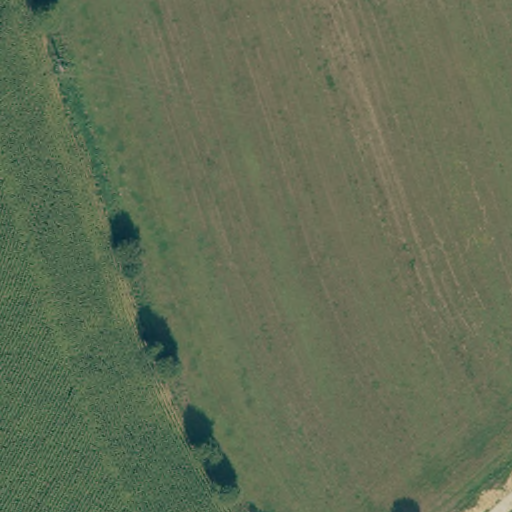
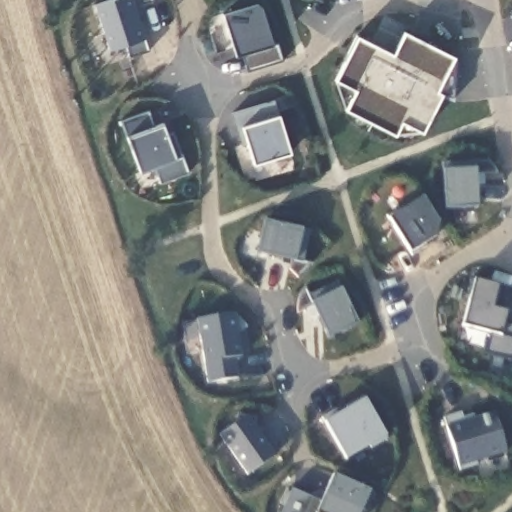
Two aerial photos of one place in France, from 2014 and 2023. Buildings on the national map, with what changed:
new [(135,7),(150,50),(130,55),(127,44),(110,49),(95,4),(112,0),(153,0),(153,1),(135,7)]
new [(440,92),(420,130),(401,121),(395,133),(346,109),(355,88),(337,79),(358,36),(394,52),(405,33),(456,58),(454,100),(440,92)]
new [(252,163),(240,127),(234,113),(276,100),(279,116),(290,151),(252,163)]
new [(149,111),(154,127),(162,124),(169,141),(175,138),(189,172),(160,183),(154,166),(140,171),(121,120),(149,111)]
new [(476,173),(477,206),(445,208),(442,170),(440,161),(490,160),(498,171),(476,173)]
new [(435,239),(411,251),(391,217),(423,197),(439,220),(435,239)]
new [(305,262),(313,264),(299,275),(292,267),(294,260),(257,251),(264,222),(302,229),(311,231),(305,262)]
new [(500,310),(507,312),(504,322),(512,325),(512,360),(485,354),(491,331),(463,323),(475,278),(499,285),(505,287),(500,310)]
new [(330,336),(312,302),(341,288),(357,322),(330,336)]
new [(234,313),(241,356),(235,358),(238,377),(207,382),(196,319),(234,313)]
new [(364,396),(387,436),(345,460),(322,421),(364,396)]
new [(443,416),(461,412),(463,417),(473,414),(475,417),(494,411),(506,453),(477,462),(478,467),(459,471),(443,416)]
new [(247,476),(219,435),(246,414),(275,456),(247,476)]
new [(312,498),(320,502),(333,475),(334,475),(370,491),(361,512),(280,512),(291,487),(312,498)]

